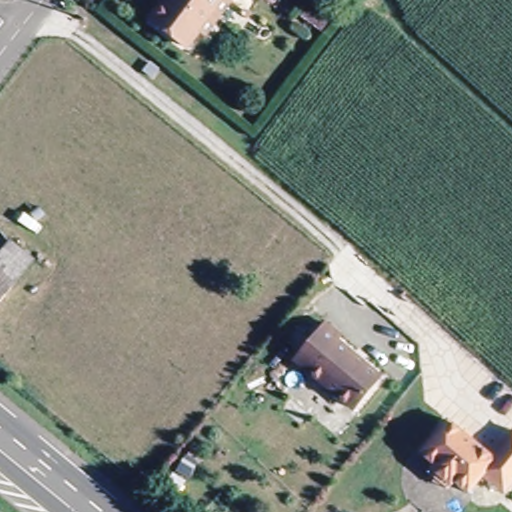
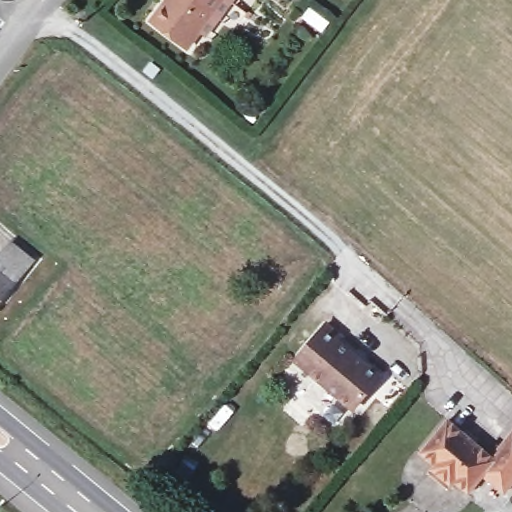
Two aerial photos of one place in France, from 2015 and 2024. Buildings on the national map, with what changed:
unchanged [(201,32),(188,50),(152,22),(169,0),(233,0),(206,35),(201,32)]
unchanged [(34,261),(15,284),(0,302),(0,257),(11,243),(34,261)]
unchanged [(354,411),(296,362),(327,325),(342,337),(339,342),(382,377),(354,411)]
unchanged [(435,466),(421,455),(448,422),(492,457),(512,434),(512,485),(505,494),(483,477),(470,493),(455,482),(451,486),(431,470),(435,466)]

